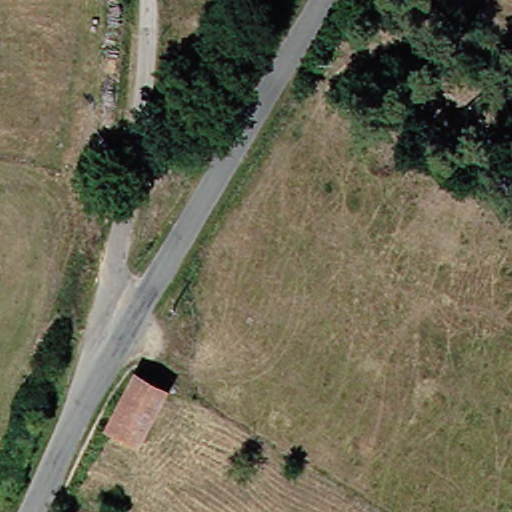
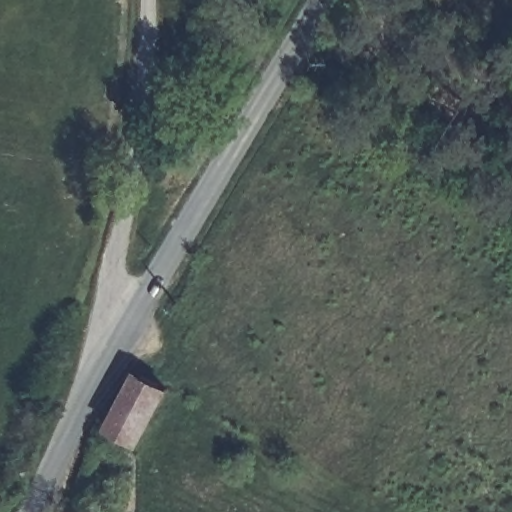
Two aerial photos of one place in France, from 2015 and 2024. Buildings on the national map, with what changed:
unchanged [(127,366),(158,384),(129,437),(97,419),(127,366)]

